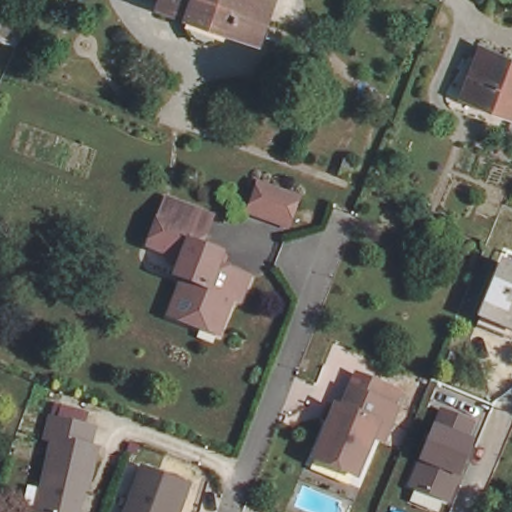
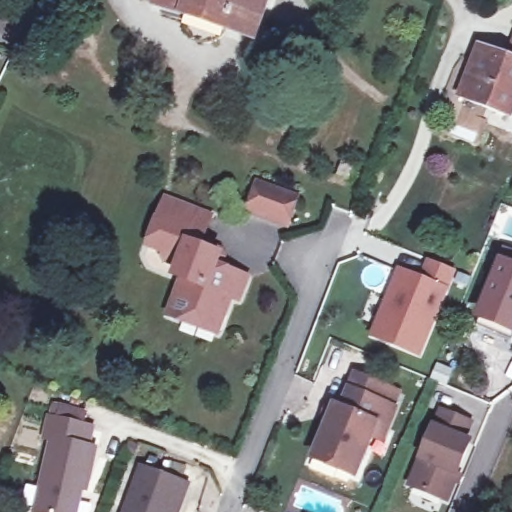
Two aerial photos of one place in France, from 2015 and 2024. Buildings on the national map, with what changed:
unchanged [(215,38),(209,36),(203,32),(198,28),(195,23),(193,16),(170,9),(172,1),(168,0),(283,0),(278,12),(271,10),(263,32),(237,23),(234,30),(229,34),(222,37),(215,38)]
unchanged [(10,37),(20,41),(15,50),(0,45),(0,21),(0,20),(15,25),(10,37)]
new [(512,42),(512,58),(507,56),(512,42)]
unchanged [(512,58),(512,114),(461,95),(479,46),(512,58)]
unchanged [(255,179),(295,193),(284,223),(245,209),(255,179)]
unchanged [(182,283),(173,280),(176,271),(168,268),(162,257),(147,251),(156,225),(163,205),(172,207),(207,220),(198,247),(213,252),(218,260),(216,266),(246,278),(238,300),(232,298),(218,335),(199,328),(170,317),(182,283)]
new [(420,275),(422,271),(428,255),(450,264),(417,347),(373,330),(398,266),(420,275)]
unchanged [(512,266),(512,327),(480,313),(501,261),(512,266)]
unchanged [(371,435),(355,474),(313,457),(335,405),(341,408),(349,388),(355,374),(383,385),(377,400),(395,407),(386,427),(381,440),(371,435)]
unchanged [(466,425),(463,431),(459,443),(466,446),(443,503),(405,488),(435,413),(466,425)]
unchanged [(76,491),(70,512),(34,512),(31,511),(53,440),(46,438),(53,418),(95,431),(88,451),(95,453),(85,485),(82,493),(76,491)]
unchanged [(145,467),(187,485),(181,500),(176,512),(127,512),(145,467)]

